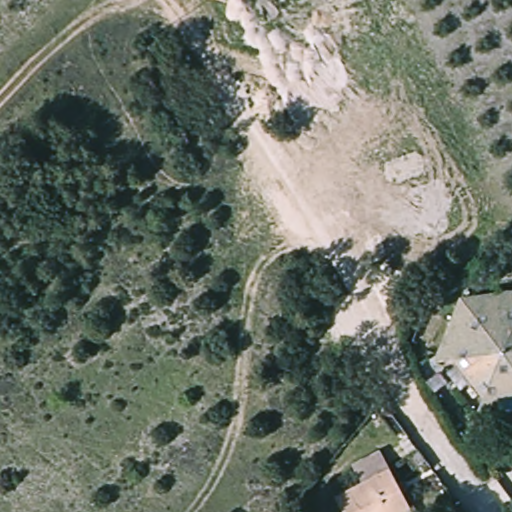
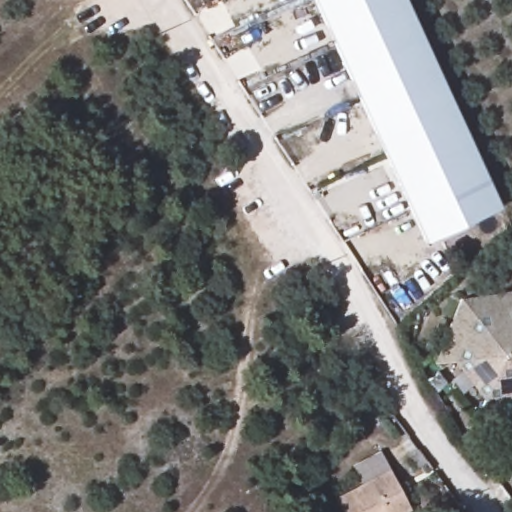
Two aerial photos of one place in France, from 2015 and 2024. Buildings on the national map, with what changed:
new [(499,206),(425,240),(316,0),(404,0),(499,206)]
unchanged [(455,361),(435,362),(461,298),(512,291),(512,396),(484,400),(455,361)]
unchanged [(512,396),(512,412),(479,417),(484,400),(512,396)]
unchanged [(419,448),(409,455),(402,444),(410,437),(419,448)]
unchanged [(414,512),(338,512),(331,495),(356,482),(349,461),(382,449),(414,512)]

